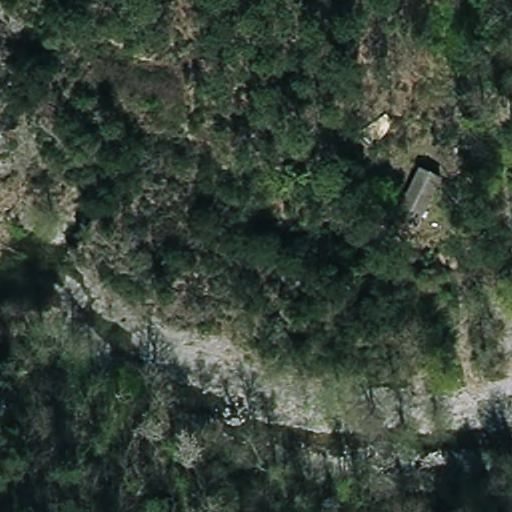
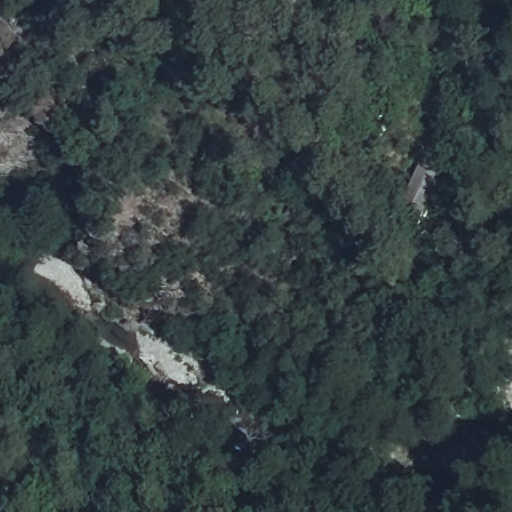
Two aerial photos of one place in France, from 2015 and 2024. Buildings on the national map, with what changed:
unchanged [(388,226),(413,164),(441,174),(412,238),(388,226)]

